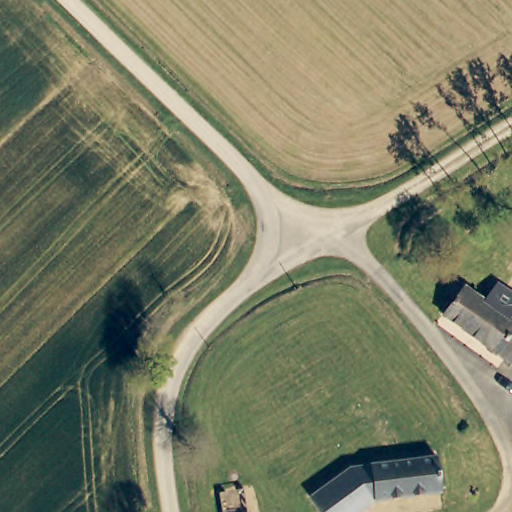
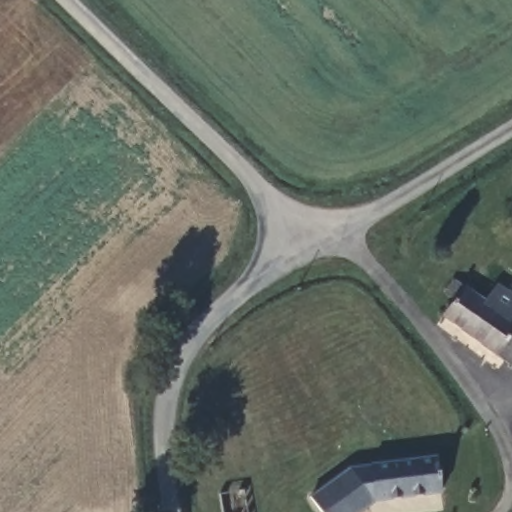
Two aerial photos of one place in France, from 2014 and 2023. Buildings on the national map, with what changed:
unchanged [(446,316),(456,300),(446,292),(456,279),(489,307),(470,335),(446,316)]
unchanged [(512,320),(512,361),(470,335),(489,307),(512,320)]
unchanged [(441,492),(407,497),(393,498),(376,500),(372,464),(387,462),(401,460),(437,456),(441,492)]
unchanged [(376,500),(358,512),(323,512),(311,495),(352,466),(372,464),(376,500)]

